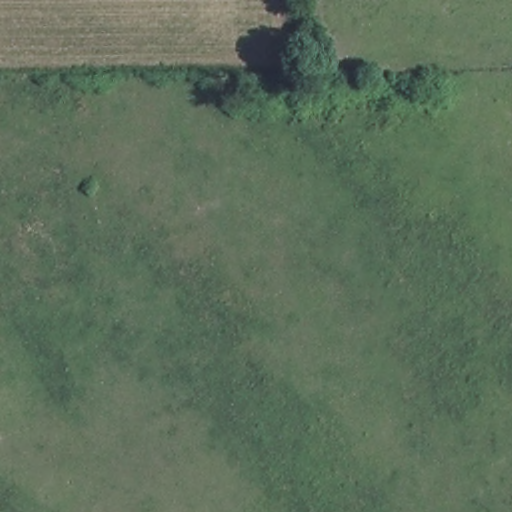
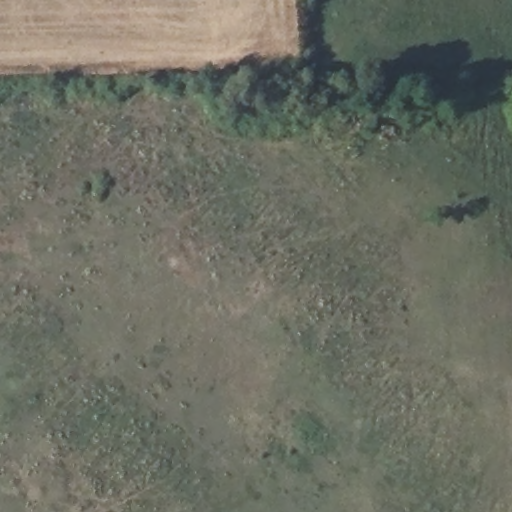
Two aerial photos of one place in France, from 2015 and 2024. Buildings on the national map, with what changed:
[]

